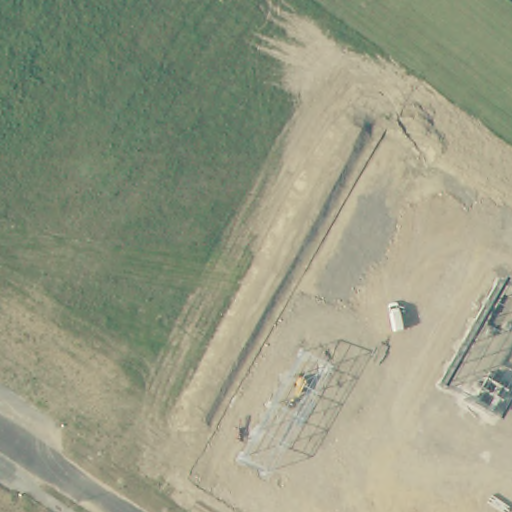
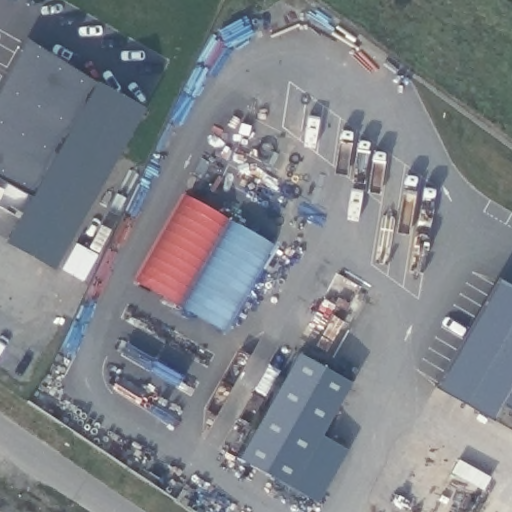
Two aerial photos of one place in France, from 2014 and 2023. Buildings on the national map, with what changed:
new [(15,0),(17,0),(16,1),(15,0)]
new [(5,245),(31,197),(0,180),(0,87),(26,39),(146,108),(54,269),(5,245)]
new [(227,330),(139,279),(186,194),(232,219),(276,243),(227,330)]
unchanged [(497,278),(512,286),(512,411),(500,404),(492,420),(434,387),(497,278)]
new [(240,458),(299,352),(352,383),(320,435),(347,450),(317,502),(240,458)]

